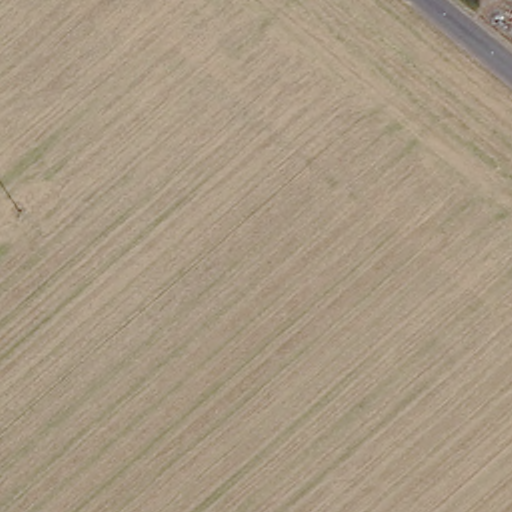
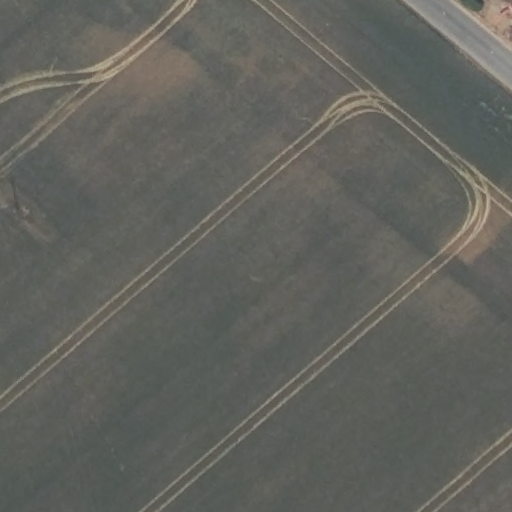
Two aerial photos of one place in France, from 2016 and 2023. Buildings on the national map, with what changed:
[]

